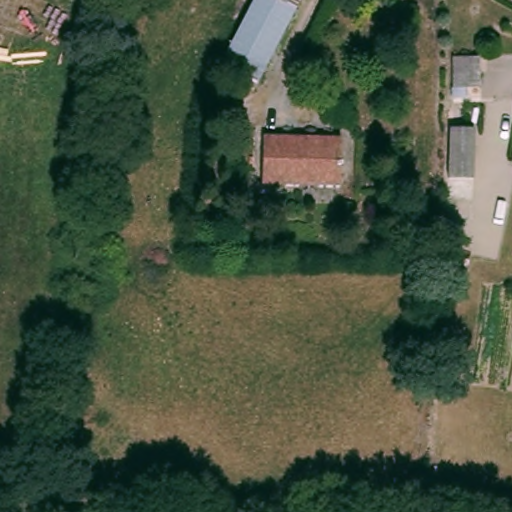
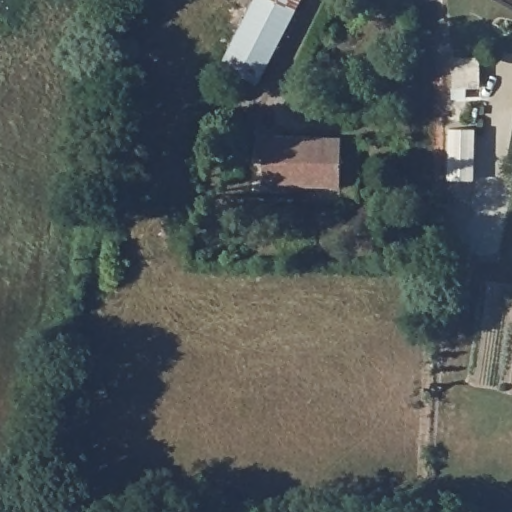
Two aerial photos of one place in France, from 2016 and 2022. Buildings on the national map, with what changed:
unchanged [(236,50),(266,0),(310,0),(274,68),(236,50)]
unchanged [(447,181),(448,126),(475,126),(473,181),(447,181)]
unchanged [(345,189),(263,187),(265,136),(342,136),(345,189)]

